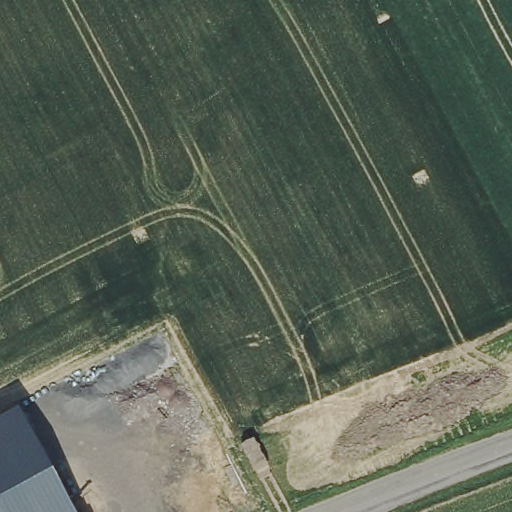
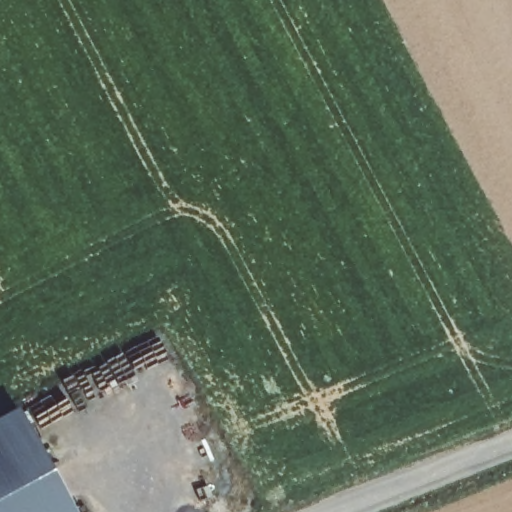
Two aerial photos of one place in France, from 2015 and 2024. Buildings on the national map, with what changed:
unchanged [(0,512),(0,420),(18,410),(73,512),(0,512)]

